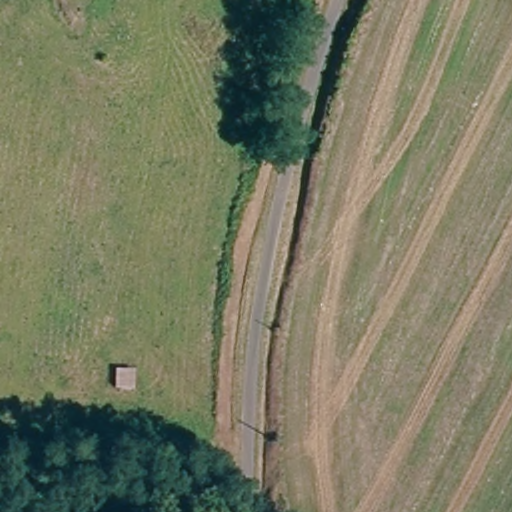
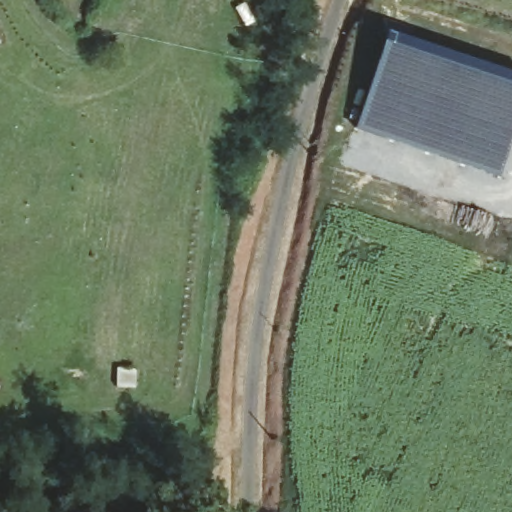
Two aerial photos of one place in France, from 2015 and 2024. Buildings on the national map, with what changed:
new [(386,32),(424,45),(422,52),(512,84),(512,143),(500,177),(355,129),(386,32)]

